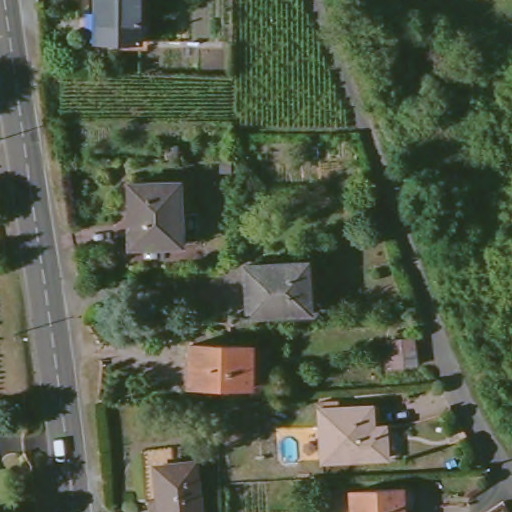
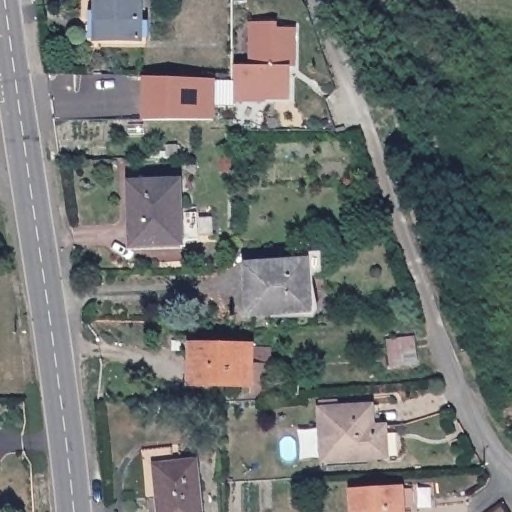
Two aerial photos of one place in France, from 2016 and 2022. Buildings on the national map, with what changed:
unchanged [(96,43),(97,0),(140,0),(140,44),(96,43)]
new [(296,66),(290,66),(288,101),(235,102),(235,66),(250,66),(249,23),(276,23),(277,29),(296,28),(296,66)]
new [(141,119),(142,78),(215,80),(215,118),(141,119)]
unchanged [(125,246),(125,183),(177,184),(177,246),(125,246)]
unchanged [(247,316),(243,267),(306,265),(310,314),(247,316)]
unchanged [(392,368),(391,338),(417,338),(417,368),(392,368)]
unchanged [(187,385),(188,347),(250,348),(247,386),(187,385)]
unchanged [(322,461),(320,408),(372,408),(373,433),(385,433),(386,458),(322,461)]
unchanged [(176,471),(176,463),(192,463),(197,512),(156,512),(152,472),(176,471)]
unchanged [(400,493),(401,512),(353,512),(352,494),(400,493)]

